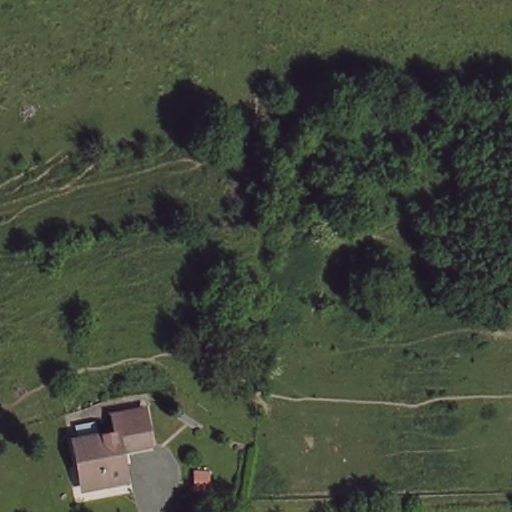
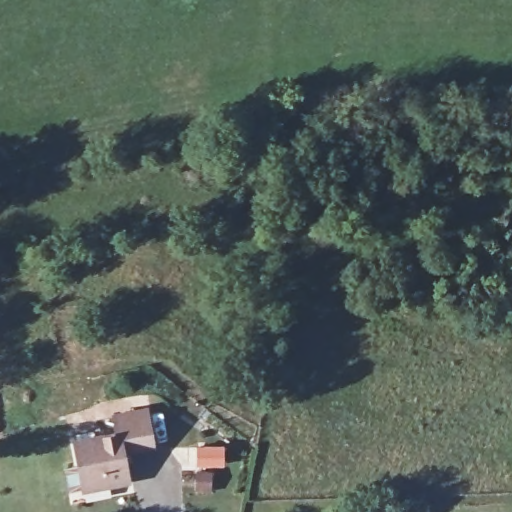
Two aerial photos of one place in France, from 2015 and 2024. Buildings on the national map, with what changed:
unchanged [(124,436),(132,477),(108,482),(106,475),(85,480),(79,444),(112,437),(109,418),(108,405),(145,399),(146,411),(149,431),(124,436)]

